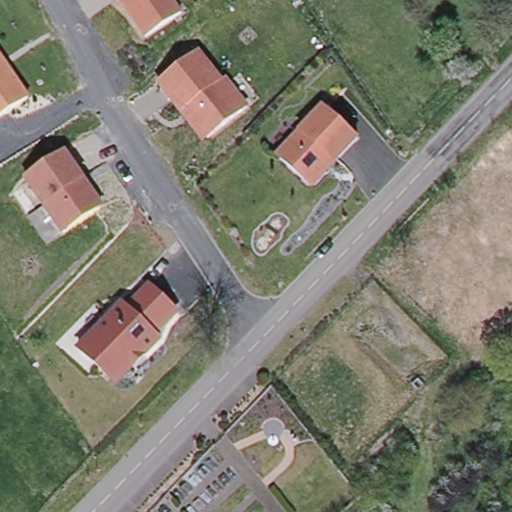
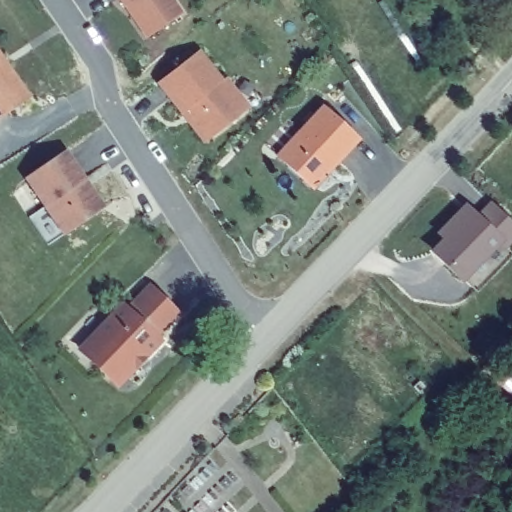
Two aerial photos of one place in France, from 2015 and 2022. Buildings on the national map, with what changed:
unchanged [(120,0),(174,0),(183,13),(145,37),(120,0)]
unchanged [(0,116),(0,49),(30,96),(0,116)]
unchanged [(223,82),(229,79),(252,111),(203,147),(156,84),(203,49),(223,82)]
unchanged [(301,131),(324,107),(358,139),(335,164),(331,161),(324,167),(325,176),(316,186),(308,185),(277,157),(301,131)]
unchanged [(28,212),(45,202),(27,174),(68,147),(85,175),(104,203),(100,206),(63,230),(47,241),(28,212)]
new [(490,201),(512,223),(512,242),(506,248),(512,254),(512,255),(476,292),(464,282),(462,285),(428,252),(440,240),(434,235),(464,204),(474,212),(490,201)]
unchanged [(123,305),(128,311),(151,287),(178,312),(156,336),(160,341),(118,386),(80,350),(123,305)]

